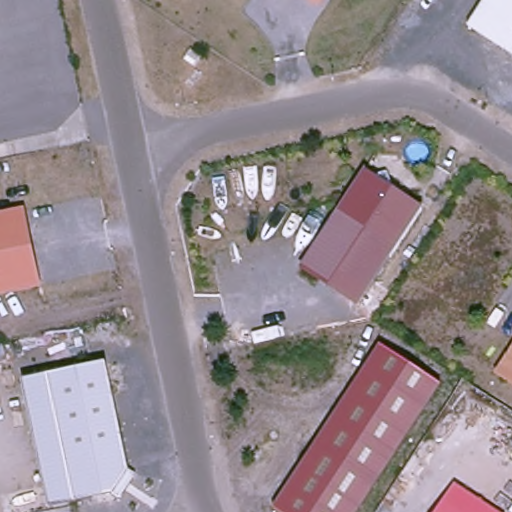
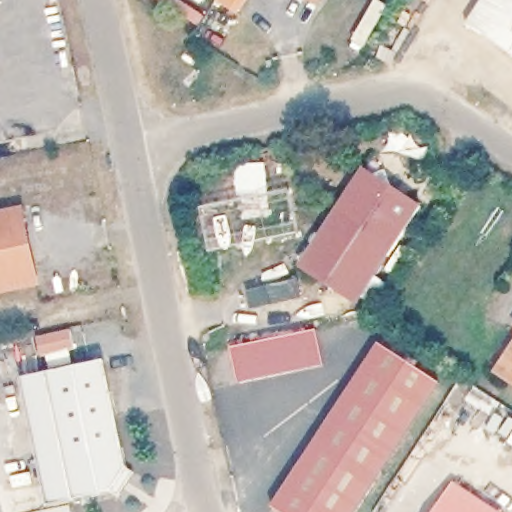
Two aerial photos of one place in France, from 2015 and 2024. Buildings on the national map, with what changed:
new [(0,2),(0,0),(2,0),(2,1),(0,2)]
unchanged [(469,25),(485,0),(512,0),(512,53),(469,25)]
unchanged [(177,46),(171,56),(160,49),(167,39),(177,46)]
new [(271,214),(240,216),(237,171),(267,168),(271,214)]
unchanged [(388,174),(393,189),(424,209),(362,305),(303,266),(366,171),(377,178),(388,174)]
unchanged [(39,285),(0,294),(0,217),(24,212),(39,285)]
new [(313,328),(321,365),(235,383),(227,346),(313,328)]
unchanged [(442,383),(357,512),(287,512),(277,506),(382,346),(442,383)]
unchanged [(512,350),(512,378),(510,376),(499,370),(512,350)]
unchanged [(122,499),(115,494),(76,503),(49,375),(107,363),(130,471),(137,475),(122,499)]
unchanged [(49,375),(76,503),(50,508),(23,381),(49,375)]
unchanged [(454,480),(502,512),(466,512),(443,497),(454,480)]
unchanged [(433,512),(443,497),(466,512),(433,512)]

